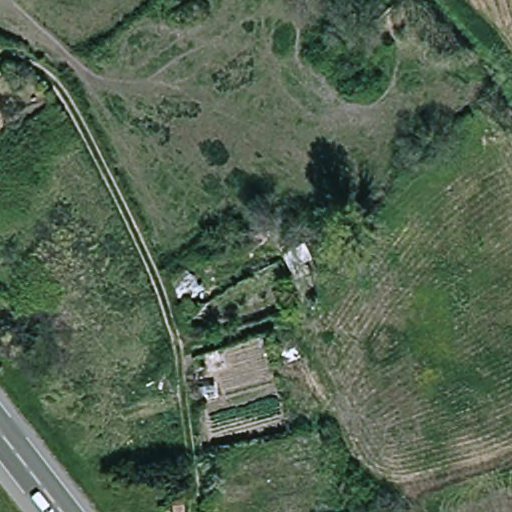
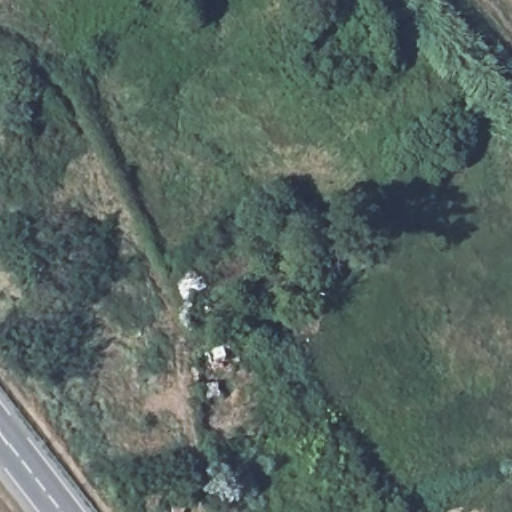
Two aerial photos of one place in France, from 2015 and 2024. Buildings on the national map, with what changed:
unchanged [(182,300),(171,276),(193,263),(205,286),(182,300)]

